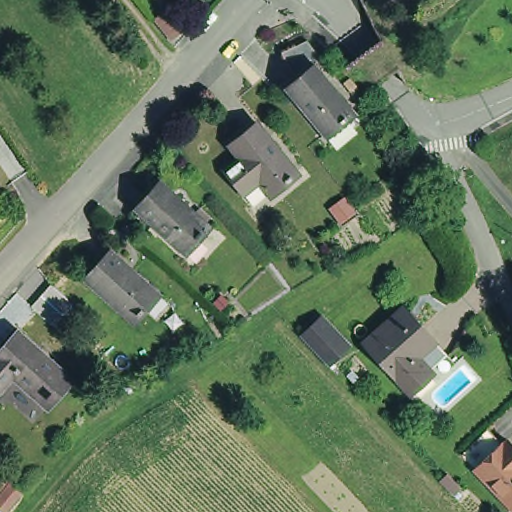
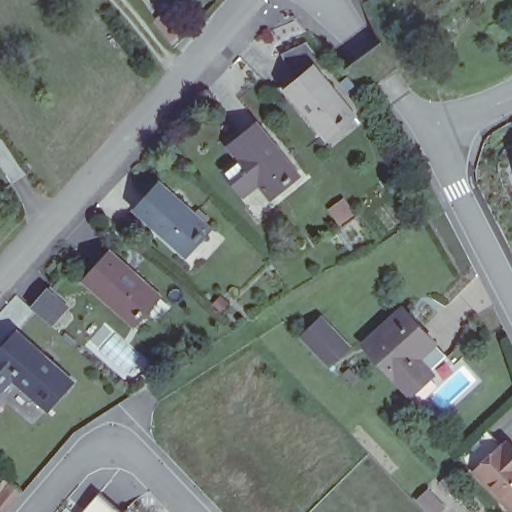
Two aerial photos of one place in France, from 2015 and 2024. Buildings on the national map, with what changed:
unchanged [(177,42),(156,20),(172,6),(190,29),(177,42)]
unchanged [(293,87),(287,80),(277,60),(303,48),(317,66),(310,71),(310,73),(349,119),(341,125),(342,127),(337,132),(335,130),(320,143),(282,96),(293,87)]
unchanged [(275,192),(266,180),(244,198),(224,172),(242,157),(232,145),(242,136),(245,140),(262,128),(297,174),(291,179),(292,181),(287,186),(285,184),(275,192)]
unchanged [(164,188),(208,228),(182,256),(139,215),(164,188)]
unchanged [(111,252),(158,294),(143,311),(149,315),(144,321),(138,316),(132,324),(85,282),(111,252)]
unchanged [(52,287),(74,307),(54,329),(32,309),(52,287)]
unchanged [(426,383),(420,388),(404,403),(402,402),(360,355),(375,342),(400,319),(431,354),(443,368),(426,383)]
unchanged [(337,357),(326,368),(317,359),(307,349),(301,343),(313,331),(322,322),(339,338),(347,347),(337,357)]
unchanged [(12,354),(25,339),(74,382),(49,411),(14,380),(0,395),(0,353),(5,348),(12,354)]
unchanged [(510,510),(508,512),(470,472),(475,467),(492,451),(497,446),(499,447),(503,443),(512,452),(512,512),(510,510)]
new [(100,493),(122,512),(83,512),(100,493)]

